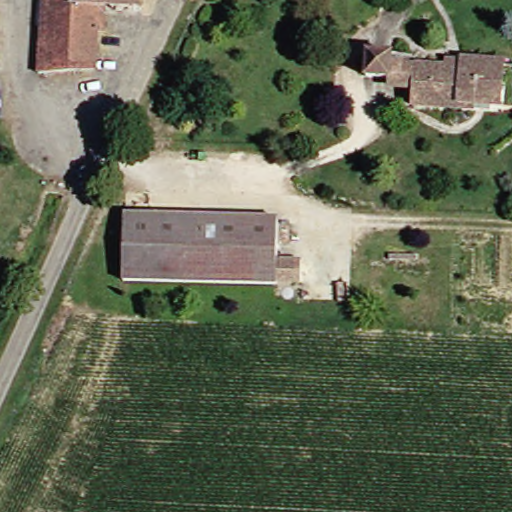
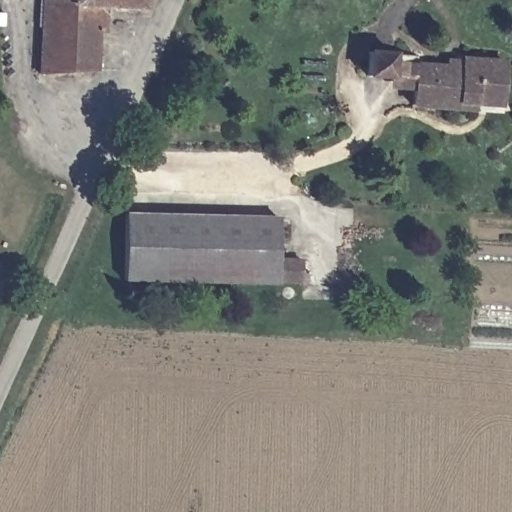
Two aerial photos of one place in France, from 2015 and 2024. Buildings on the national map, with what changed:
unchanged [(110,2),(110,67),(59,69),(57,67),(46,0),(153,0),(153,2),(110,2)]
unchanged [(423,102),(422,84),(395,84),(395,75),(393,76),(375,75),(377,49),(395,49),(397,49),(397,61),(457,61),(457,50),(470,50),(512,52),(512,90),(507,91),(507,99),(492,99),(492,106),(477,105),(423,102)]
unchanged [(135,210),(285,214),(284,257),(310,257),(310,278),(285,279),(285,283),(132,278),(135,210)]

